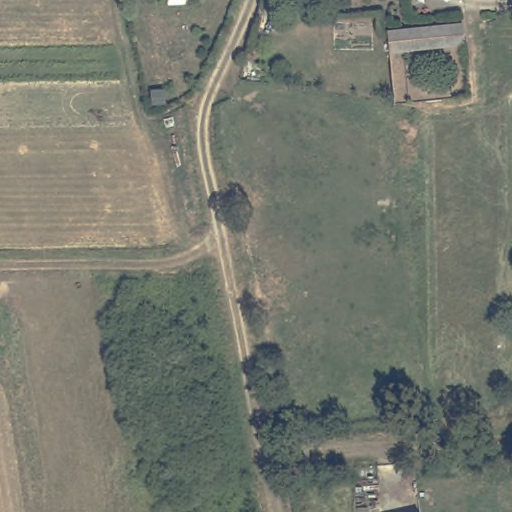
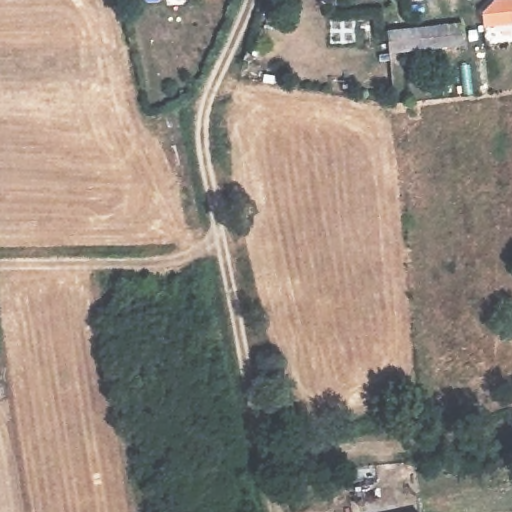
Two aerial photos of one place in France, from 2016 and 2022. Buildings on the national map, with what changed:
new [(481,16),(494,2),(512,0),(512,27),(483,30),(481,16)]
unchanged [(389,46),(387,24),(466,17),(467,40),(389,46)]

